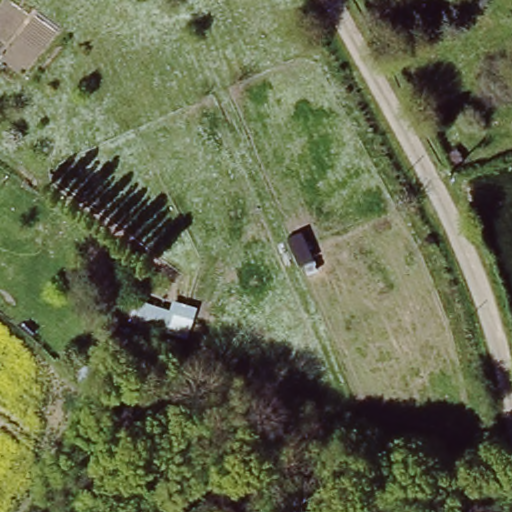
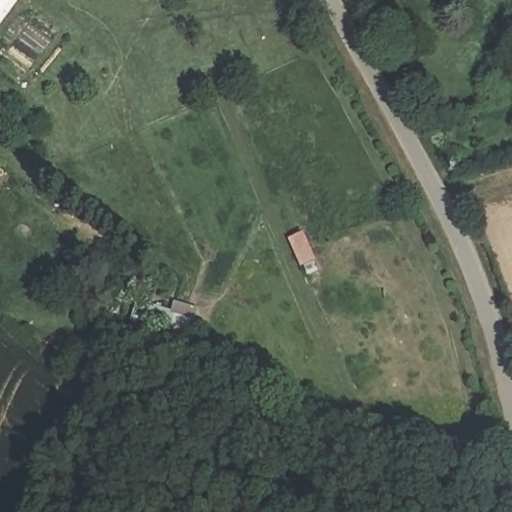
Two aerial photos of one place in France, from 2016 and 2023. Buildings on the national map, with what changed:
unchanged [(80,349),(99,368),(90,385),(69,366),(80,349)]

